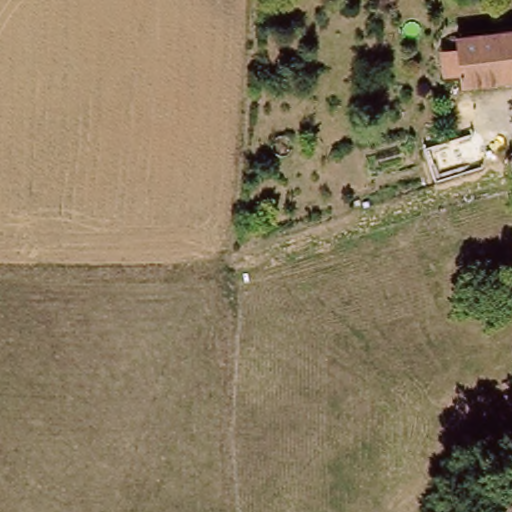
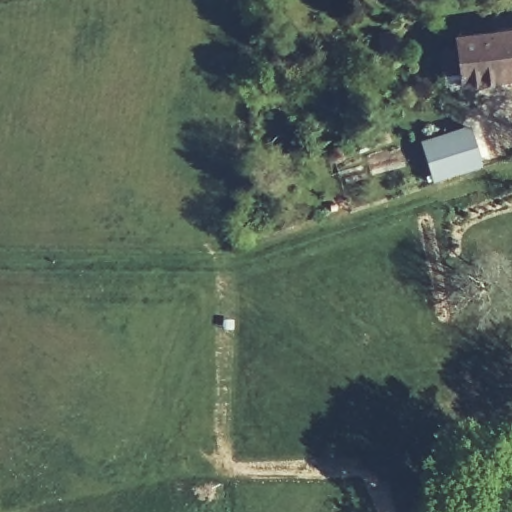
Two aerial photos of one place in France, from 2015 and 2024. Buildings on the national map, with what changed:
unchanged [(455,42),(512,34),(512,80),(510,81),(460,87),(455,42)]
new [(434,182),(420,141),(471,125),(484,166),(434,182)]

